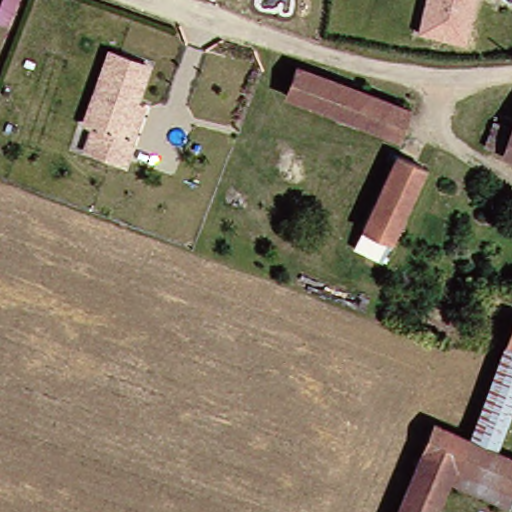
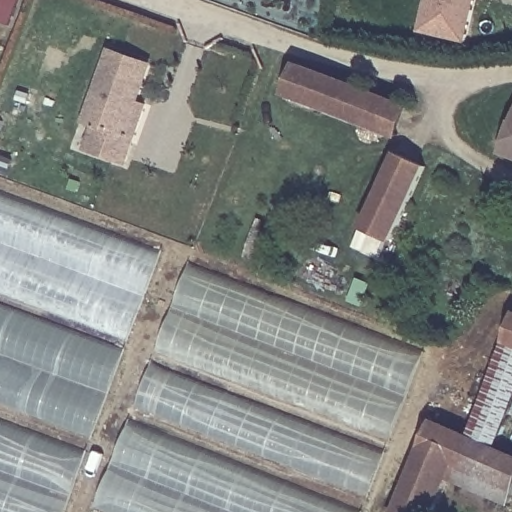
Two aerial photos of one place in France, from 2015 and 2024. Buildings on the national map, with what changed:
unchanged [(464,41),(418,31),(424,0),(473,0),(464,41)]
unchanged [(132,140),(122,166),(84,150),(93,127),(83,123),(111,52),(148,66),(134,104),(122,137),(132,140)]
unchanged [(296,65),(406,109),(395,138),(285,95),(296,65)]
unchanged [(500,122),(512,128),(512,156),(489,147),(500,122)]
unchanged [(397,153),(427,167),(393,240),(364,227),(397,153)]
new [(70,512),(0,512),(0,195),(161,253),(70,512)]
new [(422,357),(365,512),(92,512),(185,265),(422,357)]
unchanged [(433,512),(390,512),(427,425),(469,441),(512,330),(512,404),(494,451),(512,460),(512,493),(506,506),(447,479),(433,512)]
demolished [(512,424),(512,436),(508,434),(512,424)]

